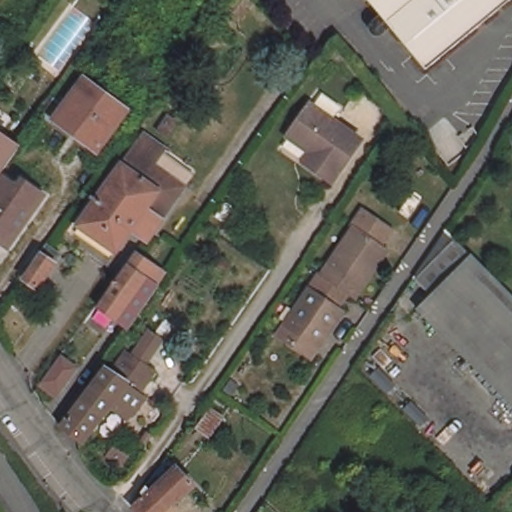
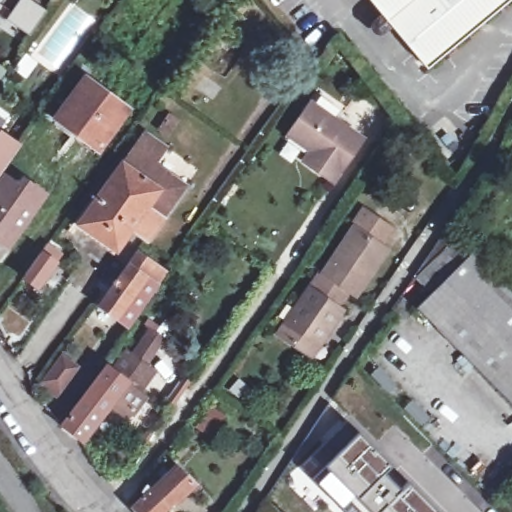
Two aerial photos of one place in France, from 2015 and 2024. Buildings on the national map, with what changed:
new [(10,18),(23,0),(36,0),(50,10),(33,34),(10,18)]
unchanged [(370,0),(512,0),(427,70),(370,0)]
unchanged [(88,74),(85,79),(120,104),(86,149),(62,133),(65,126),(48,114),(81,69),(88,74)]
unchanged [(365,138),(336,181),(307,160),(314,150),(291,134),(313,101),(365,138)]
unchanged [(168,147),(156,163),(186,183),(181,190),(156,227),(148,239),(133,228),(122,244),(105,233),(102,237),(83,224),(105,193),(100,189),(105,184),(108,187),(147,133),(168,147)]
unchanged [(0,168),(0,135),(15,146),(0,168)]
unchanged [(20,188),(25,182),(46,197),(9,249),(0,242),(0,188),(7,179),(20,188)]
unchanged [(373,272),(357,296),(350,292),(324,274),(355,228),(352,225),(363,209),(393,229),(382,245),(385,246),(388,249),(373,272)]
unchanged [(512,294),(512,403),(417,307),(431,293),(415,277),(447,229),(512,294)]
unchanged [(58,259),(53,268),(51,267),(33,293),(21,284),(45,250),(58,259)]
unchanged [(133,253),(158,269),(150,283),(155,287),(130,320),(125,329),(95,307),(133,253)]
unchanged [(307,355),(278,336),(321,272),(324,274),(350,292),(338,309),(343,312),(330,333),(312,359),(307,355)]
unchanged [(115,413),(112,417),(106,413),(83,443),(63,428),(107,368),(115,373),(127,356),(142,333),(161,344),(146,368),(155,373),(141,392),(150,398),(135,417),(131,423),(115,413)]
unchanged [(67,356),(81,366),(60,390),(53,376),(67,356)]
unchanged [(223,418),(211,438),(200,430),(212,409),(223,418)]
new [(316,481),(304,469),(332,441),(350,424),(394,468),(390,472),(407,489),(411,484),(438,512),(347,512),(316,481)]
unchanged [(146,499),(142,495),(147,487),(167,458),(177,468),(194,485),(170,509),(167,508),(162,512),(137,512),(135,510),(146,499)]

